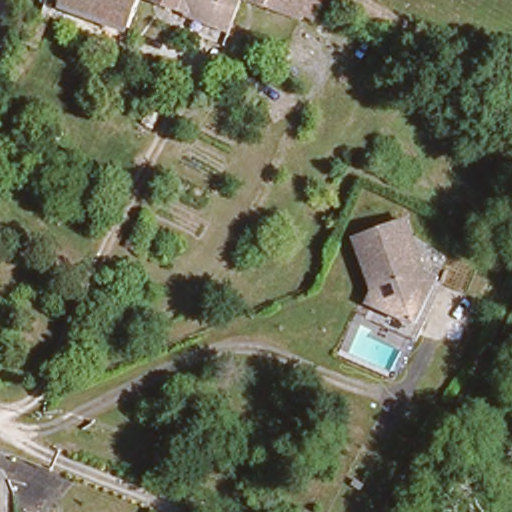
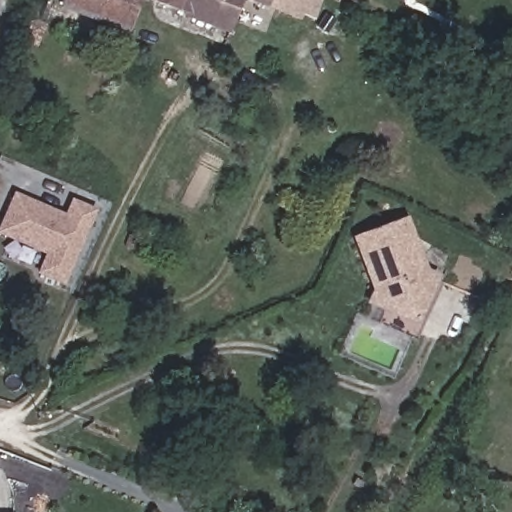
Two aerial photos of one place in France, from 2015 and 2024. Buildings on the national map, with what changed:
unchanged [(31,11),(36,0),(49,0),(40,16),(27,39),(8,31),(19,16),(31,11)]
unchanged [(133,0),(123,19),(75,0),(133,0)]
unchanged [(167,0),(237,0),(226,24),(167,0)]
unchanged [(257,0),(264,0),(263,3),(257,0)]
unchanged [(297,11),(296,16),(263,3),(264,0),(318,0),(309,16),(297,11)]
new [(37,275),(45,255),(0,234),(0,223),(14,191),(64,214),(71,199),(96,211),(63,286),(37,275)]
unchanged [(402,209),(415,265),(428,272),(403,319),(361,296),(368,283),(354,237),(352,228),(360,225),(402,209)]

